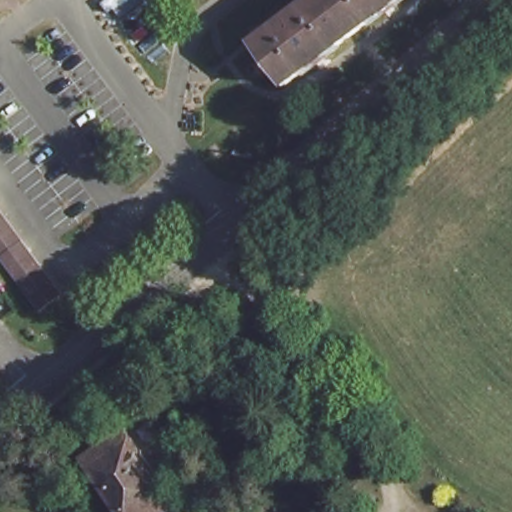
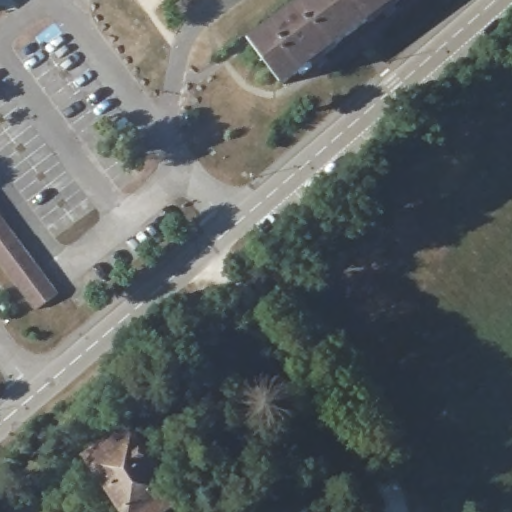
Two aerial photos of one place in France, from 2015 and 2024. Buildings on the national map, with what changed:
unchanged [(246,36),(295,0),(391,0),(278,81),(246,36)]
unchanged [(31,310),(0,267),(0,220),(53,294),(31,310)]
unchanged [(79,437),(67,446),(54,427),(65,419),(79,437)]
unchanged [(166,512),(131,512),(91,451),(132,425),(181,502),(166,512)]

